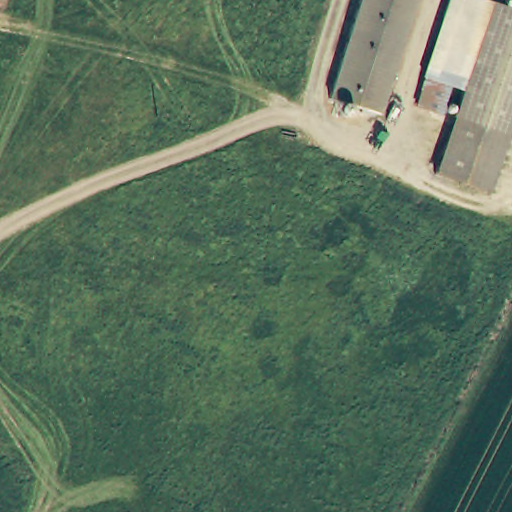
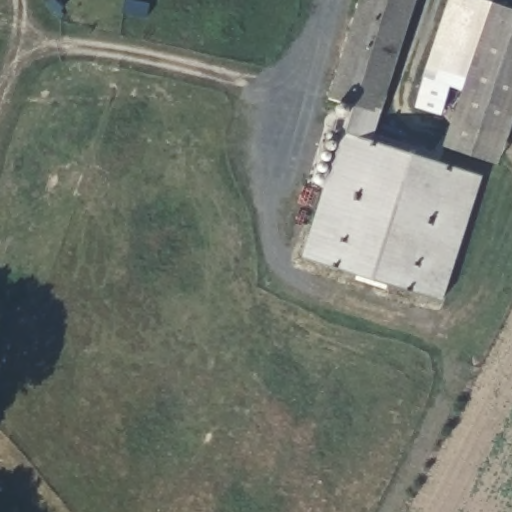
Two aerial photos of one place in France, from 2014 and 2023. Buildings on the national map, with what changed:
unchanged [(329,97),(361,0),(418,0),(380,114),(329,97)]
unchanged [(427,72),(452,0),(494,0),(465,86),(453,82),(444,111),(418,102),(427,72)]
unchanged [(456,113),(465,86),(494,0),(500,0),(512,4),(512,127),(510,131),(456,113)]
new [(371,139),(483,175),(442,300),(299,256),(347,102),(380,114),(371,139)]
new [(499,164),(444,147),(456,113),(510,131),(499,164)]

